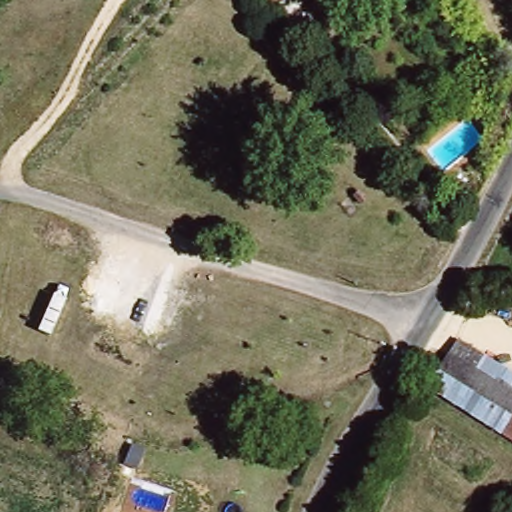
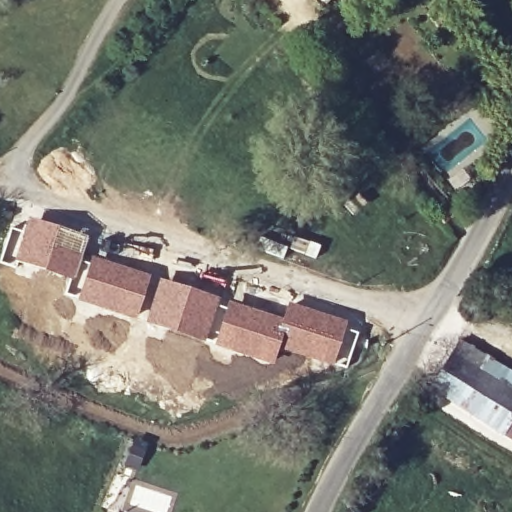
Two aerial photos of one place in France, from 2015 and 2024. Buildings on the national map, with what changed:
unchanged [(308,9),(301,0),(320,0),(308,9)]
unchanged [(364,202),(358,205),(352,196),(358,193),(364,202)]
new [(27,216),(87,236),(73,280),(12,260),(27,216)]
new [(91,256),(150,275),(136,320),(75,301),(91,256)]
new [(158,279),(220,298),(204,343),(145,323),(158,279)]
new [(228,301),(282,319),(280,332),(282,333),(278,349),(273,365),(213,346),(228,301)]
new [(282,333),(280,332),(282,319),(288,301),(348,321),(345,327),(358,331),(345,370),(278,349),(282,333)]
unchanged [(422,385),(443,352),(512,395),(512,403),(495,432),(422,385)]
unchanged [(495,432),(512,403),(512,443),(495,432)]

